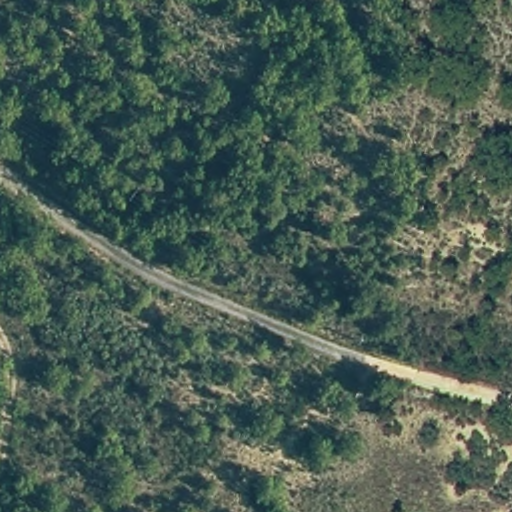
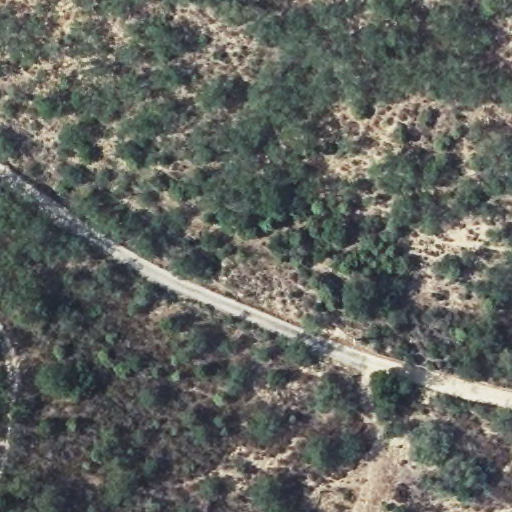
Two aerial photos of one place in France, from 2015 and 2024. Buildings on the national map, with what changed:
[]

